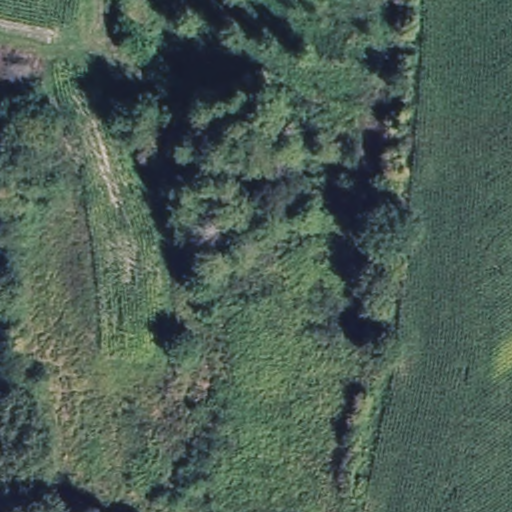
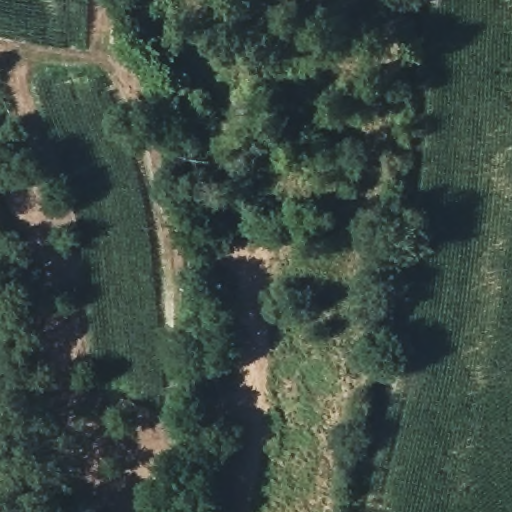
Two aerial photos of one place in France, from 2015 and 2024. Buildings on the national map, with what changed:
[]

